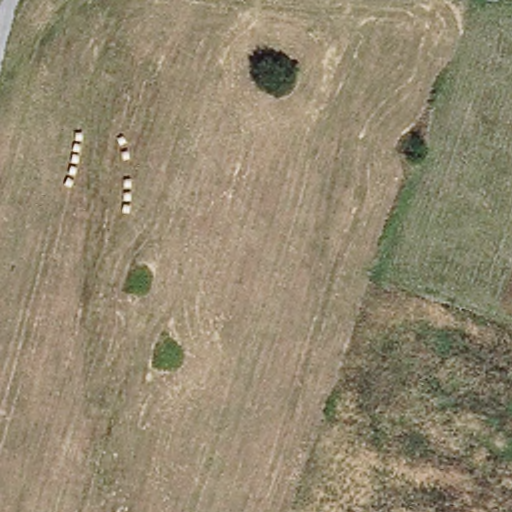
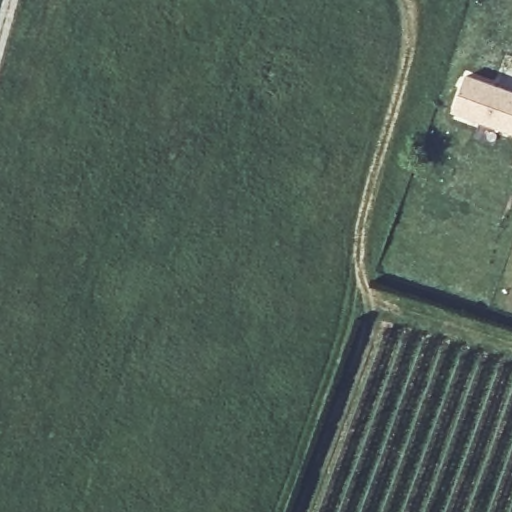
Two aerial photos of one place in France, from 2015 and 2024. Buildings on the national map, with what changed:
new [(512,89),(512,133),(455,110),(468,74),(512,89)]

